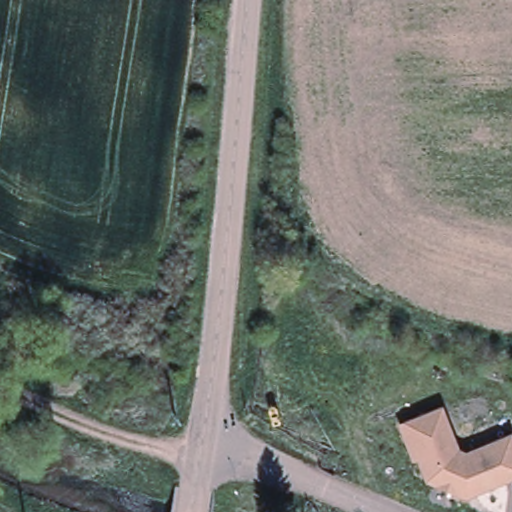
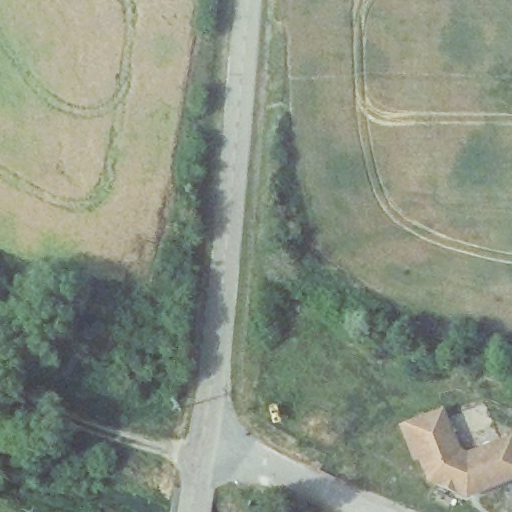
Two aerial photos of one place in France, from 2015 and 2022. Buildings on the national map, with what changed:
unchanged [(445,408),(462,450),(512,433),(512,481),(465,498),(427,485),(418,463),(411,464),(399,425),(445,408)]

